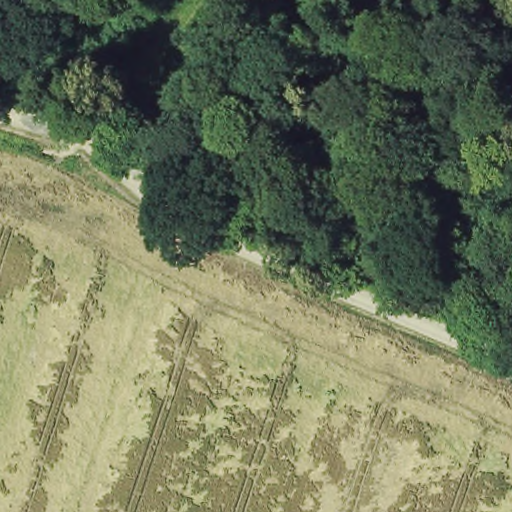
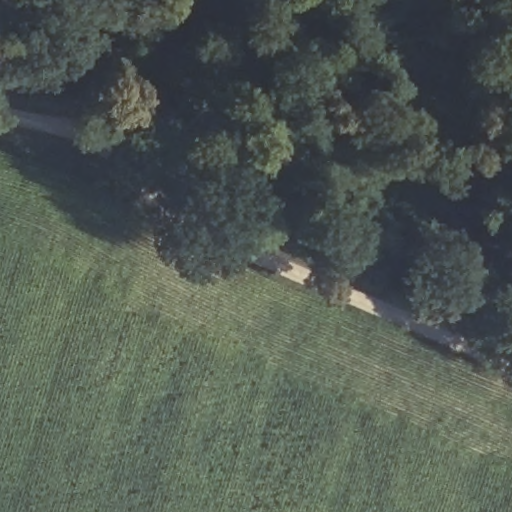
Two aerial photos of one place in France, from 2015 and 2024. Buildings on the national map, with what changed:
unchanged [(159,113),(144,106),(163,69),(180,77),(159,113)]

